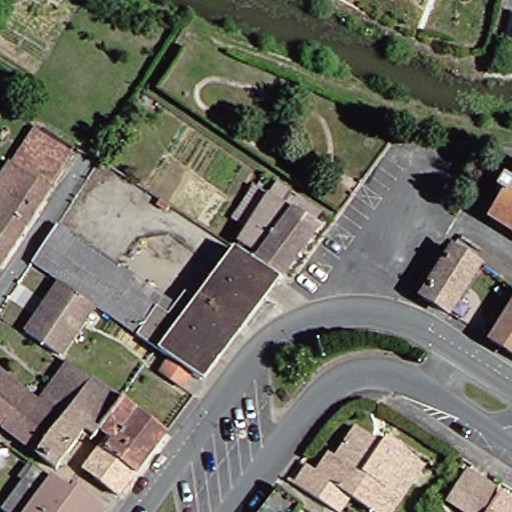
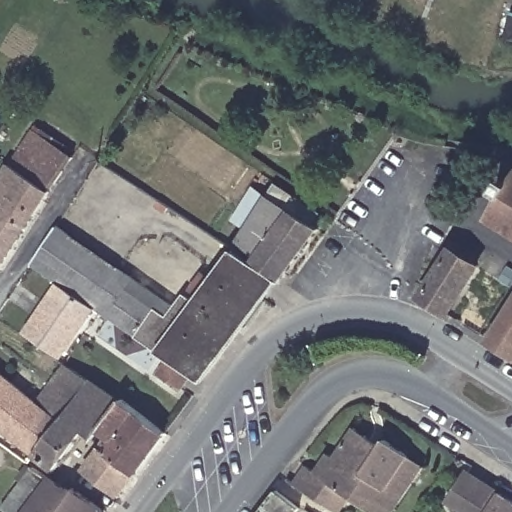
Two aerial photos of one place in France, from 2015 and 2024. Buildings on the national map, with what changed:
unchanged [(275,120),(281,120),(291,125),(295,134),(294,140),(290,149),(284,153),(276,155),(271,154),(266,150),(262,145),(260,136),(263,127),(271,121),(275,120)]
unchanged [(0,267),(0,185),(12,166),(14,167),(38,131),(77,157),(2,269),(0,267)]
unchanged [(512,180),(512,193),(506,189),(512,180)]
unchanged [(512,219),(500,212),(512,194),(512,219)]
unchanged [(286,281),(281,278),(260,262),(264,257),(247,245),(278,197),(325,232),(325,233),(286,281)]
unchanged [(185,387),(166,373),(170,370),(177,360),(157,346),(105,308),(94,323),(70,358),(35,334),(59,300),(70,285),(40,265),(65,226),(140,276),(134,286),(175,315),(192,291),(205,299),(222,276),(230,265),(242,247),(244,250),(260,262),(281,278),(268,295),(258,308),(205,378),(196,373),(187,385),(185,387)]
unchanged [(460,249),(479,260),(475,267),(480,272),(451,318),(425,302),(456,256),(460,249)]
unchanged [(512,319),(512,356),(495,345),(512,319)]
unchanged [(69,421),(47,403),(75,365),(129,401),(100,438),(92,431),(63,471),(45,455),(69,421)]
unchanged [(47,403),(69,421),(45,455),(10,426),(11,425),(0,416),(0,366),(47,403)]
unchanged [(105,450),(97,445),(100,438),(129,401),(132,403),(135,400),(172,435),(140,477),(105,450)]
unchanged [(300,485),(311,467),(320,473),(332,454),(338,457),(359,426),(385,445),(389,439),(430,465),(398,512),(377,512),(355,497),(346,512),(339,512),(330,506),(300,485)]
unchanged [(90,472),(105,450),(140,477),(125,497),(90,472)]
unchanged [(4,509),(35,468),(70,494),(75,489),(106,512),(8,512),(4,509)]
unchanged [(467,511),(451,501),(470,471),(487,481),(500,490),(486,512),(468,512),(467,511)]
unchanged [(284,490),(308,508),(306,512),(267,512),(284,490)]
unchanged [(512,497),(512,512),(490,512),(503,491),(512,497)]

